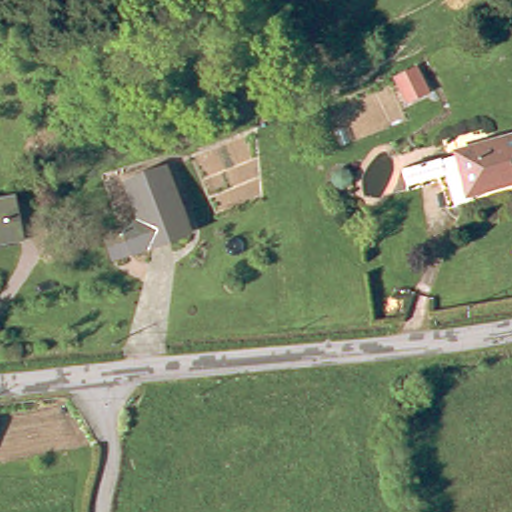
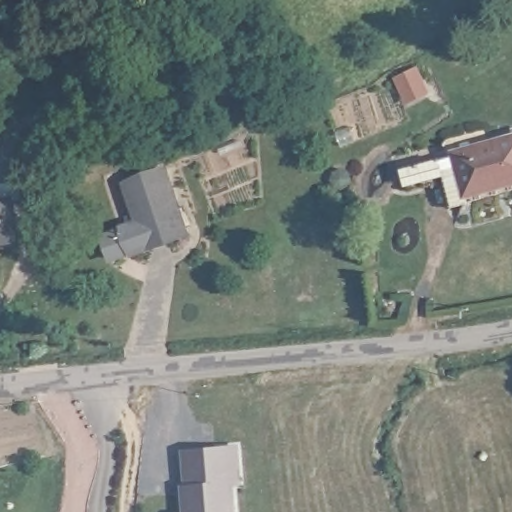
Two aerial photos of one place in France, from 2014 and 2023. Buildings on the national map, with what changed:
unchanged [(448,159),(512,139),(512,185),(461,201),(448,159)]
unchanged [(136,187),(172,177),(173,182),(191,240),(138,256),(131,234),(148,229),(143,209),(136,187)]
unchanged [(20,245),(0,247),(0,211),(16,210),(20,245)]
new [(238,512),(178,512),(184,512),(183,482),(186,482),(184,448),(239,443),(243,484),(236,484),(238,512)]

